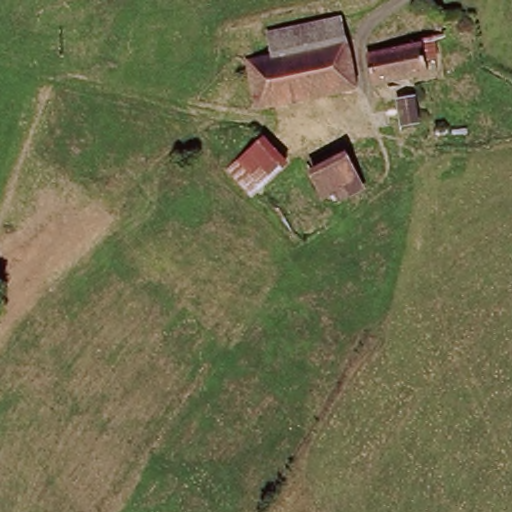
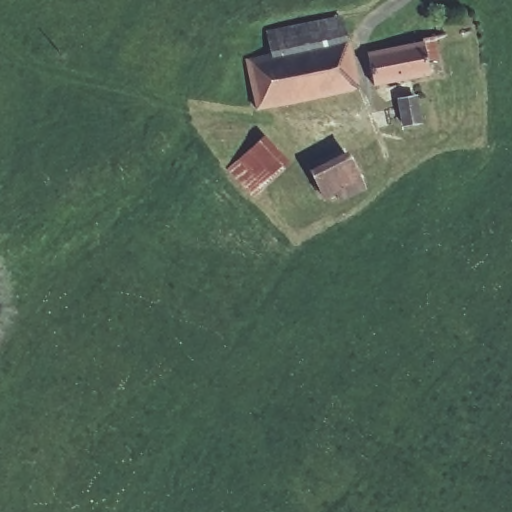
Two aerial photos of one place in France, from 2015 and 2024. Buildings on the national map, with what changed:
unchanged [(432,36),(429,15),(454,12),(456,34),(432,36)]
unchanged [(269,55),(266,32),(339,18),(343,41),(269,55)]
unchanged [(353,89),(252,110),(243,60),(269,55),(343,41),(353,89)]
unchanged [(371,87),(366,52),(421,45),(427,77),(371,87)]
unchanged [(401,126),(398,103),(414,101),(417,125),(401,126)]
unchanged [(231,172),(264,140),(287,163),(253,194),(231,172)]
unchanged [(330,194),(326,185),(314,191),(305,171),(341,153),(354,180),(330,194)]

